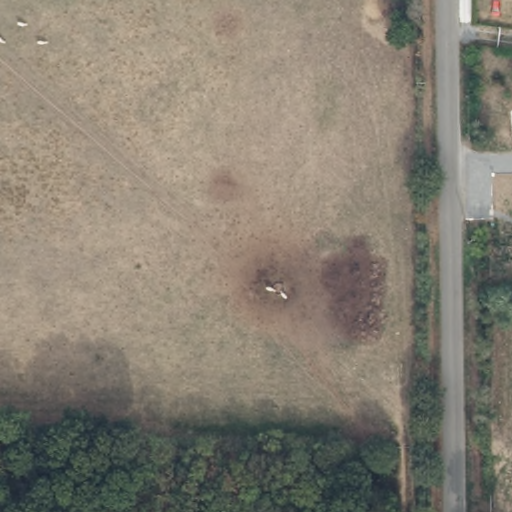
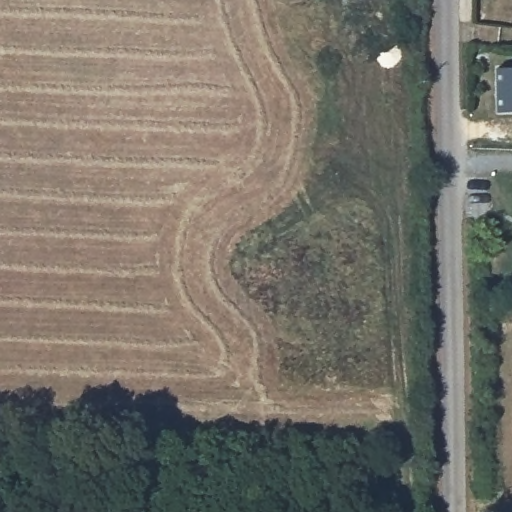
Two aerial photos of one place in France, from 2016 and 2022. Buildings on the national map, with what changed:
new [(512,68),(512,113),(497,113),(497,68),(512,68)]
demolished [(507,132),(507,108),(512,108),(512,132),(507,132)]

